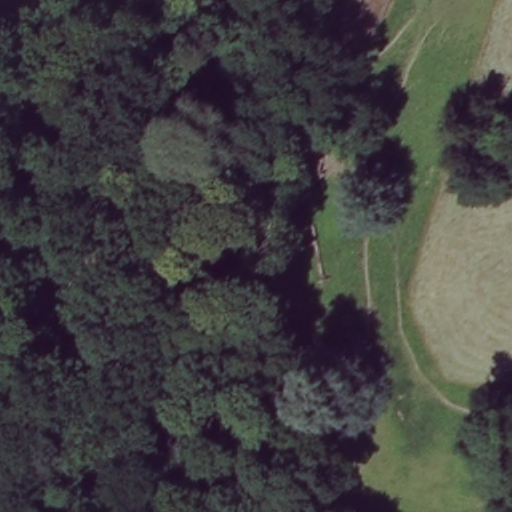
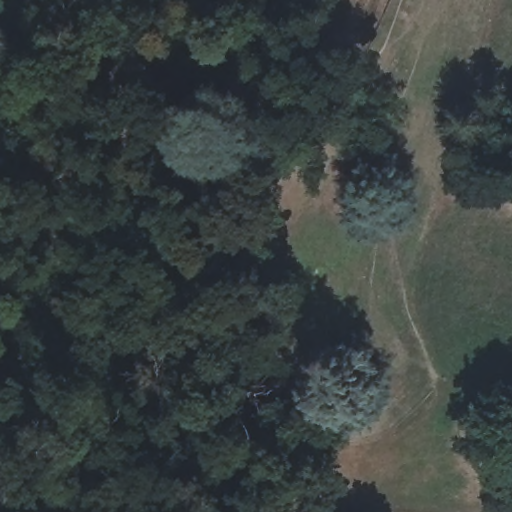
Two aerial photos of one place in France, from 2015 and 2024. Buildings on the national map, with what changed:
[]

